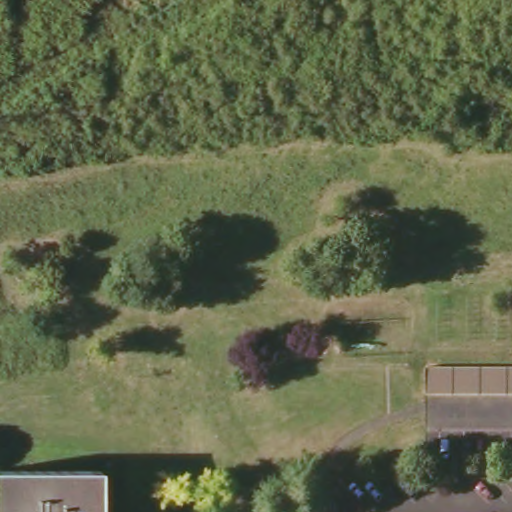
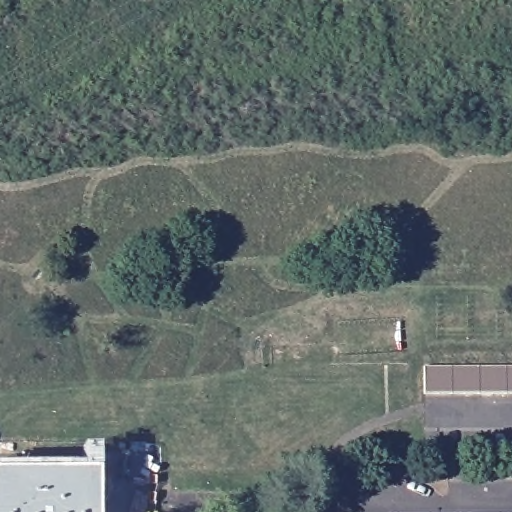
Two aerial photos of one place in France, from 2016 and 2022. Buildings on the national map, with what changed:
unchanged [(424,362),(512,362),(512,390),(422,390),(424,362)]
unchanged [(91,512),(0,512),(0,475),(92,475),(91,512)]

